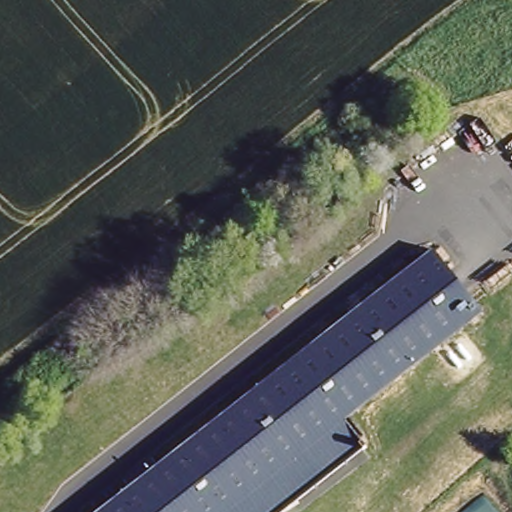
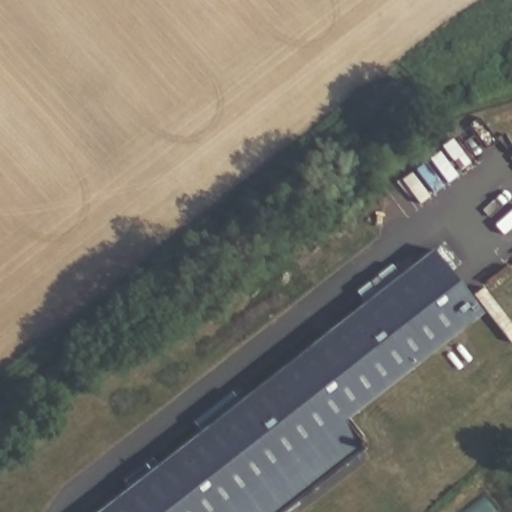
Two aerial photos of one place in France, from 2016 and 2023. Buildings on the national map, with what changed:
unchanged [(341,419),(362,446),(277,512),(91,512),(122,487),(117,480),(143,459),(150,467),(428,250),(477,313),(341,419)]

